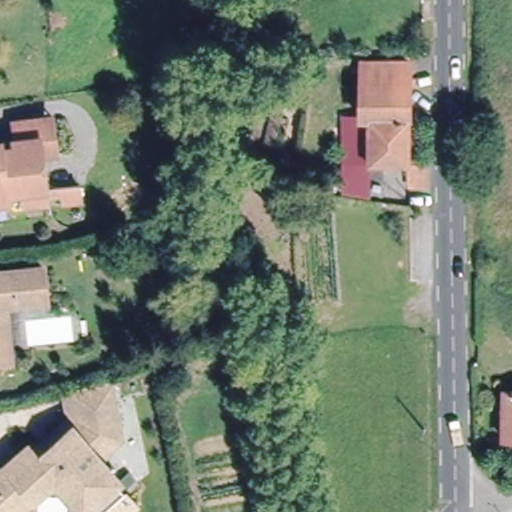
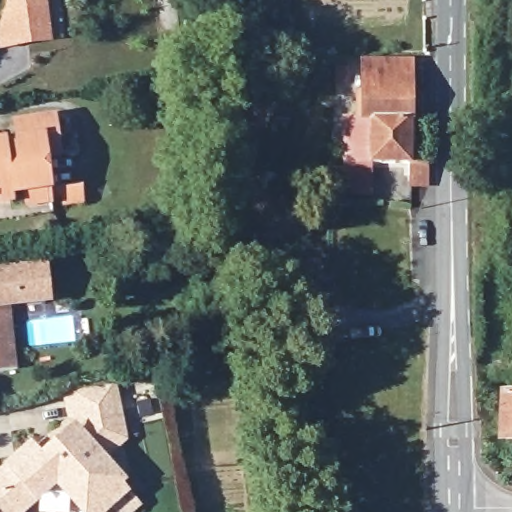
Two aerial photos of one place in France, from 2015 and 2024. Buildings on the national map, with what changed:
new [(22,25),(20,1),(5,3),(5,0),(41,0),(43,21),(22,25)]
new [(5,3),(20,1),(22,25),(43,21),(45,42),(0,47),(0,19),(5,3)]
unchanged [(342,117),(358,117),(359,61),(405,62),(405,161),(341,161),(342,117)]
unchanged [(50,117),(55,153),(40,155),(45,200),(22,202),(20,189),(5,190),(5,197),(0,197),(0,139),(15,137),(12,120),(50,117)]
unchanged [(405,186),(405,161),(421,161),(421,186),(405,186)]
unchanged [(79,201),(60,202),(59,186),(76,185),(79,201)]
unchanged [(46,303),(7,307),(10,331),(15,373),(0,375),(0,276),(42,271),(46,303)]
unchanged [(79,510),(77,511),(63,495),(31,492),(8,512),(0,512),(0,466),(22,446),(32,458),(74,423),(68,388),(105,382),(115,439),(99,452),(119,475),(116,477),(125,487),(96,511),(95,512),(80,512),(79,510)]
unchanged [(505,390),(512,391),(512,434),(503,434),(505,390)]

